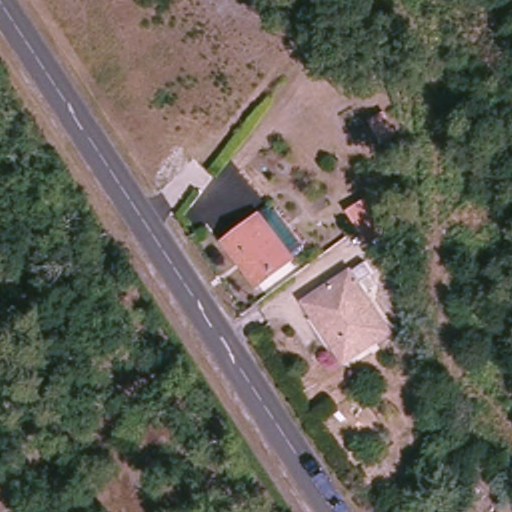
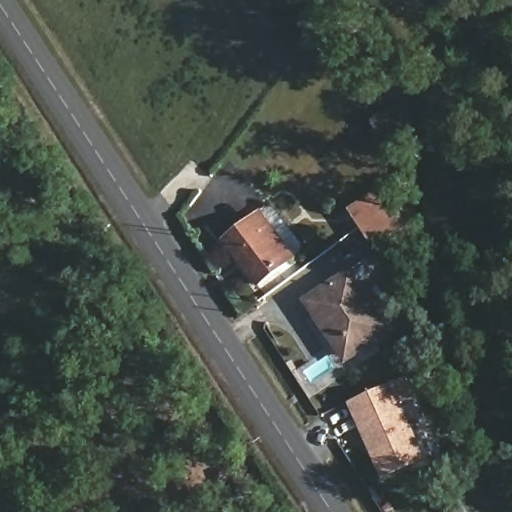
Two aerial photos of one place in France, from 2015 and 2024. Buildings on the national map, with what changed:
unchanged [(386,246),(374,230),(364,237),(352,221),(339,204),(364,184),(377,202),(402,234),(386,246)]
unchanged [(286,261),(269,272),(254,282),(224,235),(230,231),(258,215),(263,222),(273,239),(286,261)]
unchanged [(366,281),(353,291),(383,338),(347,363),(314,312),(306,317),(298,305),(356,267),(366,281)]
new [(417,398),(401,405),(426,460),(381,481),(346,404),(407,377),(417,398)]

